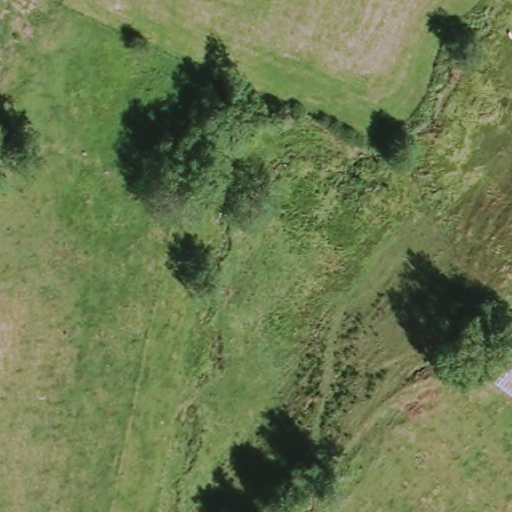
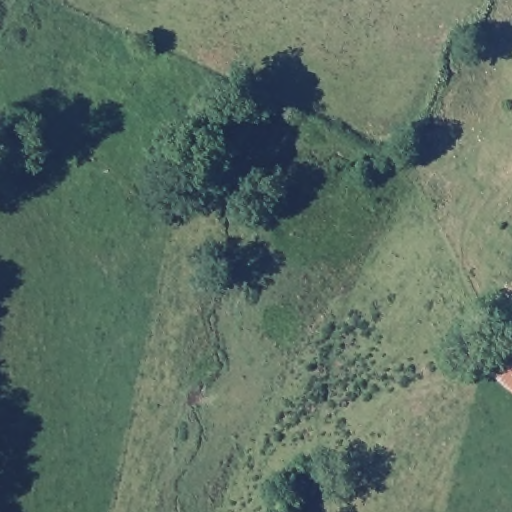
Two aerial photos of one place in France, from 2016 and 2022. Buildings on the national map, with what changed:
unchanged [(484,370),(510,340),(512,341),(512,392),(484,370)]

